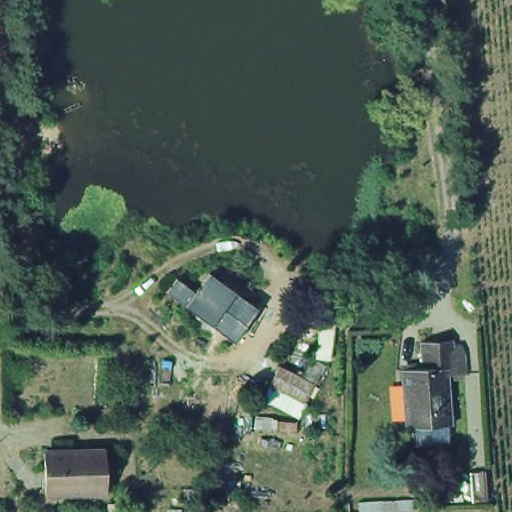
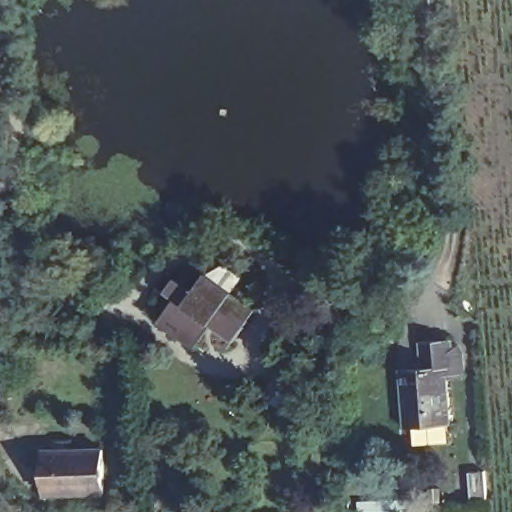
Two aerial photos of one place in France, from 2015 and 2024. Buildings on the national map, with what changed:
unchanged [(207,325),(183,307),(165,293),(174,281),(193,295),(208,275),(232,293),(227,300),(238,309),(230,320),(242,328),(230,343),(207,325)]
unchanged [(413,424),(407,425),(403,368),(423,367),(422,339),(453,338),(453,342),(463,342),(469,351),(470,370),(449,371),(452,422),(450,422),(451,441),(415,443),(413,424)]
unchanged [(40,500),(39,452),(100,451),(100,499),(40,500)]
unchanged [(471,471),(487,470),(489,497),(473,498),(471,471)]

